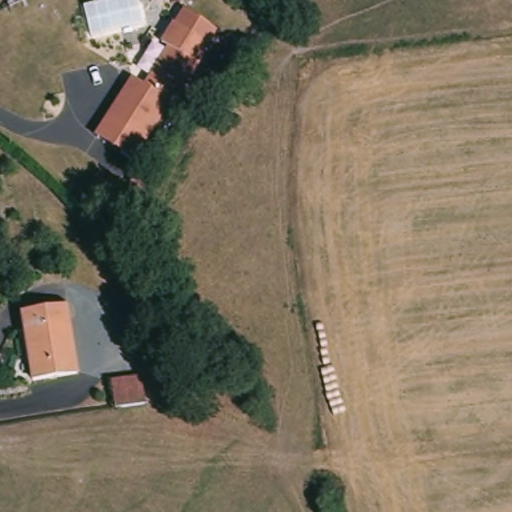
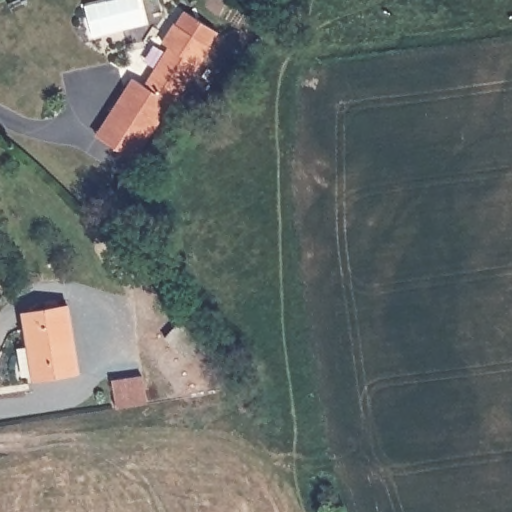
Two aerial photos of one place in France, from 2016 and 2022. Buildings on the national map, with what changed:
unchanged [(132,79),(145,86),(169,46),(164,43),(175,24),(176,25),(184,11),(217,32),(210,44),(212,46),(176,107),(172,105),(135,161),(97,135),(132,79)]
unchanged [(65,305),(76,367),(32,373),(22,311),(65,305)]
unchanged [(117,387),(145,384),(147,412),(120,416),(117,387)]

